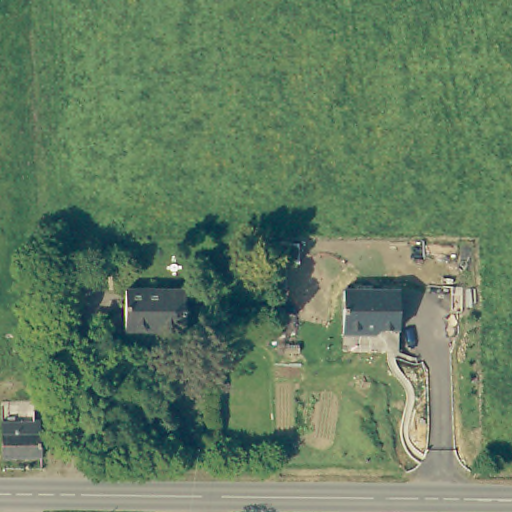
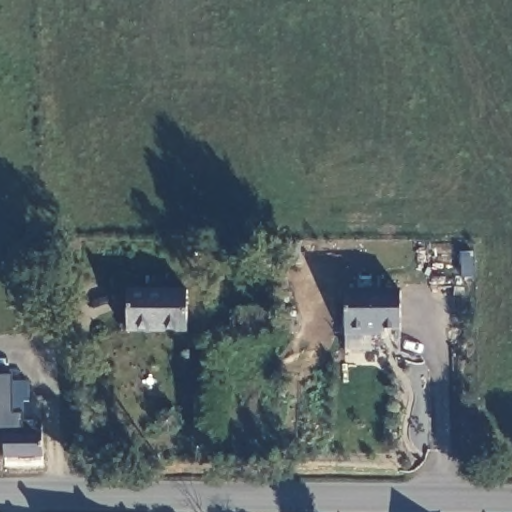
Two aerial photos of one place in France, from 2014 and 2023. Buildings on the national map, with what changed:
unchanged [(187,328),(126,328),(126,287),(187,287),(187,328)]
unchanged [(399,326),(375,326),(370,331),(344,331),(344,287),(399,287),(399,326)]
new [(0,434),(0,375),(13,375),(14,380),(28,380),(28,402),(22,402),(21,419),(3,419),(4,435),(0,434)]
unchanged [(42,454),(4,454),(3,419),(42,419),(42,454)]

